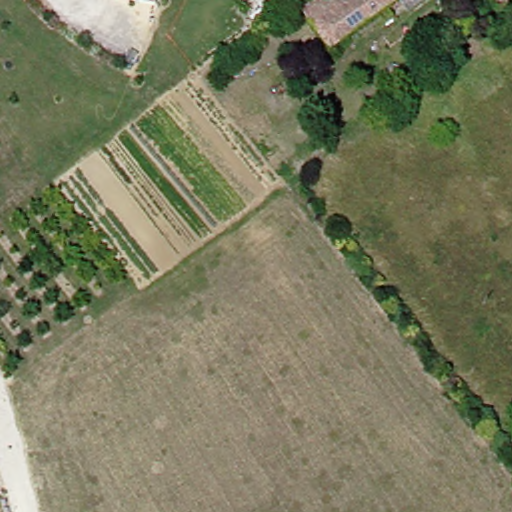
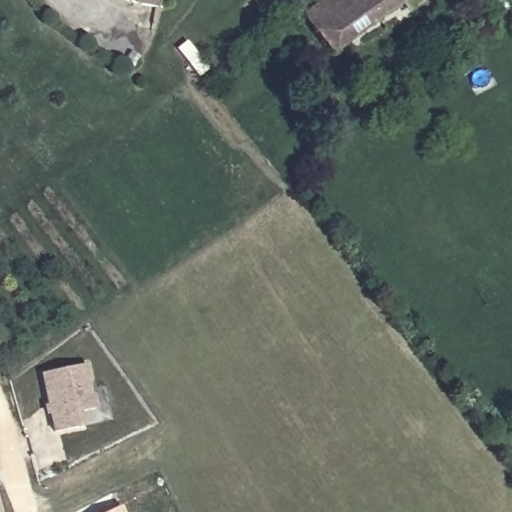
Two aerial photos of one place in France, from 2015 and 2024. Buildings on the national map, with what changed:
unchanged [(143,8),(128,0),(146,0),(143,8)]
unchanged [(326,0),(412,0),(325,60),(298,20),(326,0)]
unchanged [(442,2),(425,12),(413,0),(440,0),(442,2)]
unchanged [(512,18),(512,19),(498,28),(481,0),(502,0),(512,18)]
new [(49,415),(45,416),(43,406),(46,405),(41,375),(88,365),(96,410),(80,413),(83,426),(52,434),(49,415)]
new [(0,512),(0,499),(3,512),(0,512)]
new [(123,512),(108,512),(121,506),(123,512)]

